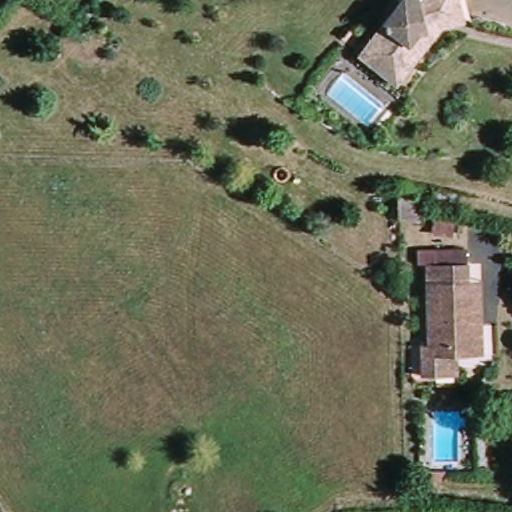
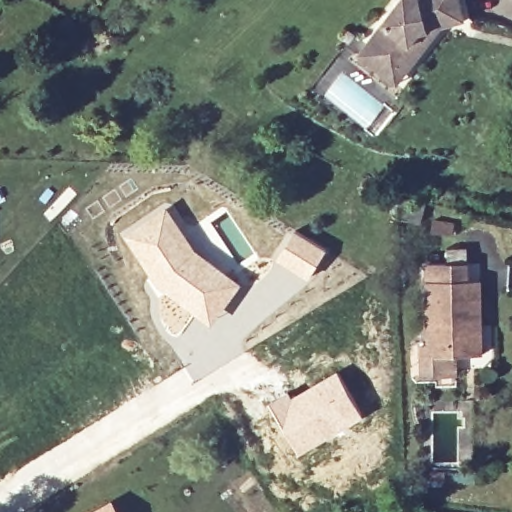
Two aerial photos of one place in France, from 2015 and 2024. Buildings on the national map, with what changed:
unchanged [(368,44),(402,0),(463,0),(469,20),(464,22),(440,29),(421,53),(406,74),(396,85),(377,70),(358,56),(368,44)]
unchanged [(407,179),(413,181),(411,187),(404,185),(407,179)]
new [(164,203),(198,248),(244,282),(212,326),(165,292),(161,297),(147,279),(150,276),(119,234),(164,203)]
new [(294,230),(327,249),(309,278),(275,261),(294,230)]
unchanged [(439,380),(426,382),(424,350),(431,348),(427,266),(466,265),(467,282),(477,281),(481,327),(482,357),(459,359),(461,379),(439,380)]
new [(289,388),(292,395),(337,370),(364,415),(300,453),(269,400),(289,388)]
new [(116,512),(99,512),(113,505),(116,512)]

